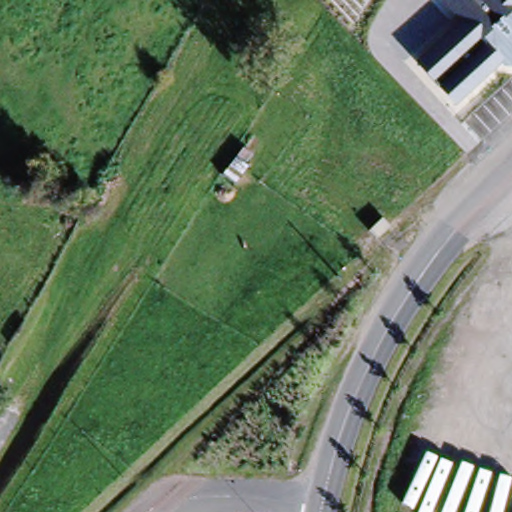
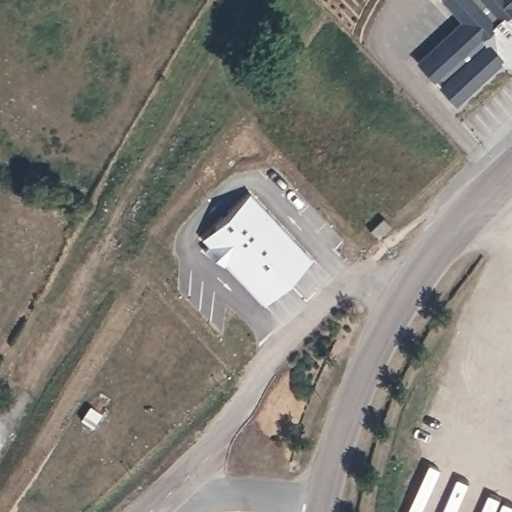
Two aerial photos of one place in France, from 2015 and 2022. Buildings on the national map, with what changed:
unchanged [(439,1),(440,0),(512,0),(512,64),(502,65),(453,104),(416,62),(459,23),(439,1)]
new [(311,258),(262,303),(227,262),(226,263),(217,263),(201,249),(206,244),(198,235),(248,190),(311,258)]
new [(378,238),(371,230),(384,217),(392,225),(378,238)]

